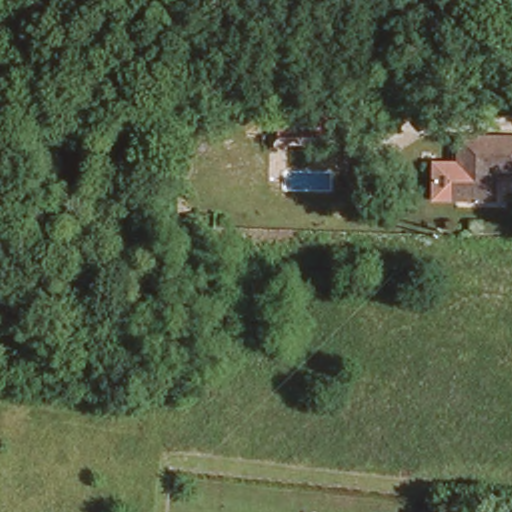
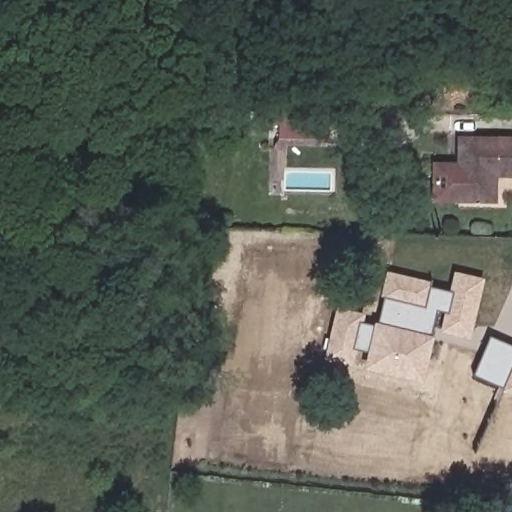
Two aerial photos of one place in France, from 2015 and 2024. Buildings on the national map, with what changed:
unchanged [(328,142),(281,141),(282,113),(329,115),(328,142)]
unchanged [(458,132),(512,132),(512,168),(493,168),(493,196),(457,195),(458,132)]
new [(338,302),(367,308),(364,322),(374,323),(375,322),(378,322),(385,297),(381,296),(387,271),(432,282),(431,287),(450,291),(455,272),(485,278),(471,338),(441,332),(445,311),(438,309),(431,335),(435,335),(424,382),(365,370),(368,352),(356,350),(352,367),(325,361),(338,302)]
new [(473,376),(491,336),(512,345),(512,395),(473,376)]

